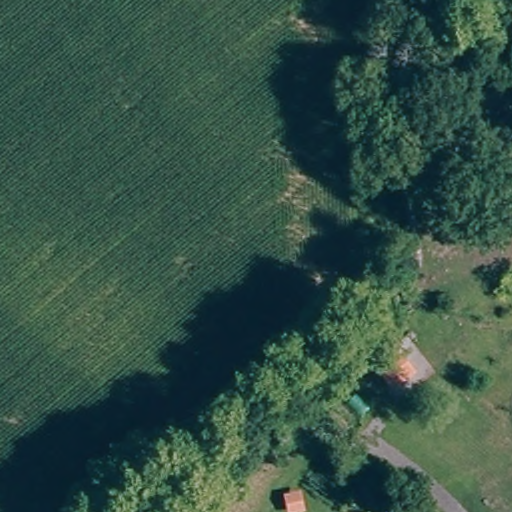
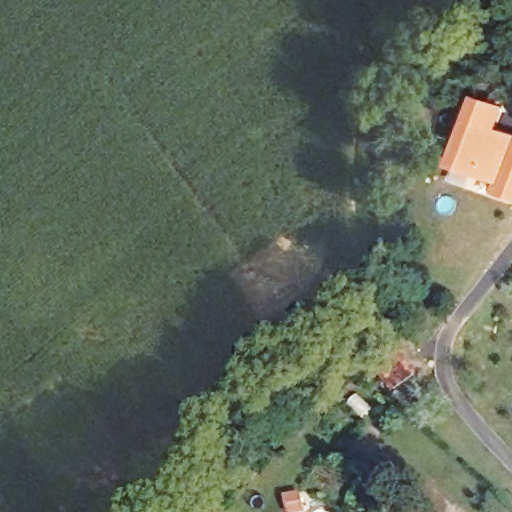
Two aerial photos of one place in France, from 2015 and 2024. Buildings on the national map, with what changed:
new [(499,129),(512,133),(512,199),(491,193),(497,181),(449,163),(474,95),(507,106),(499,129)]
unchanged [(407,512),(393,512),(398,506),(407,512)]
unchanged [(353,512),(345,512),(348,508),(353,512)]

